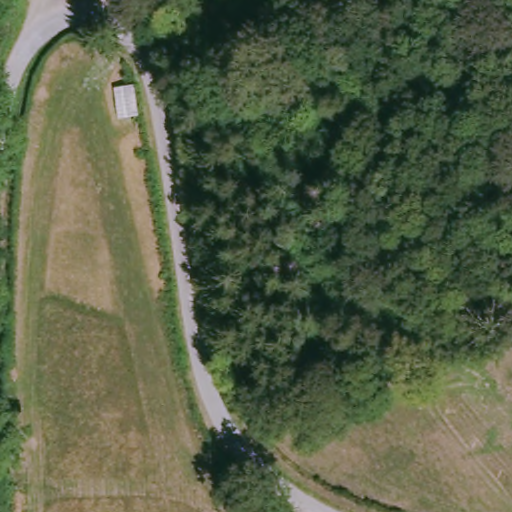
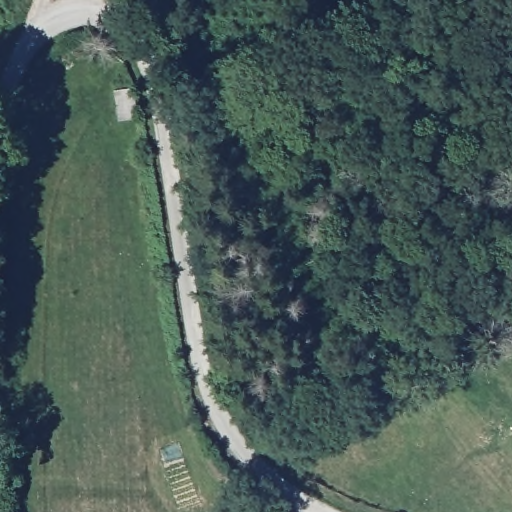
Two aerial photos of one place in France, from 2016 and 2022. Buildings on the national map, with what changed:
unchanged [(130,115),(125,88),(143,85),(151,111),(130,115)]

